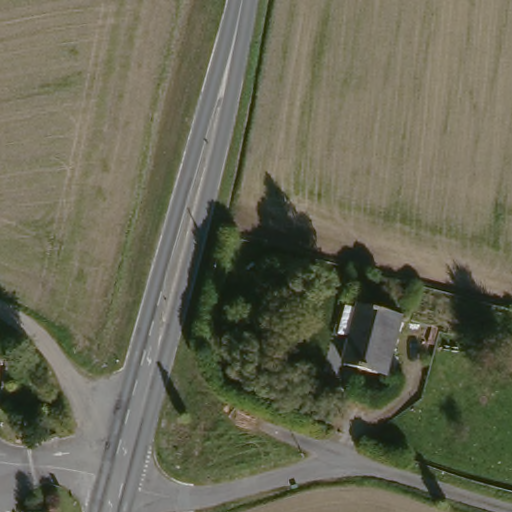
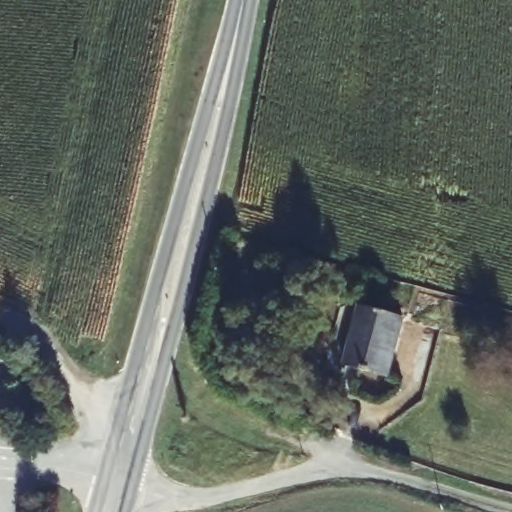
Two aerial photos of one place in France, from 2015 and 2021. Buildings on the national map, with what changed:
unchanged [(404,315),(393,373),(349,364),(360,305),(404,315)]

